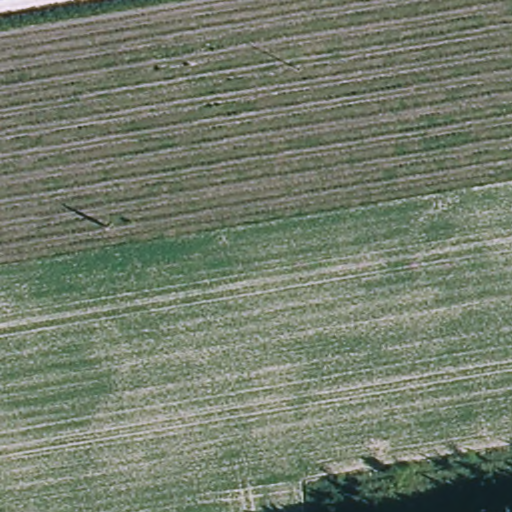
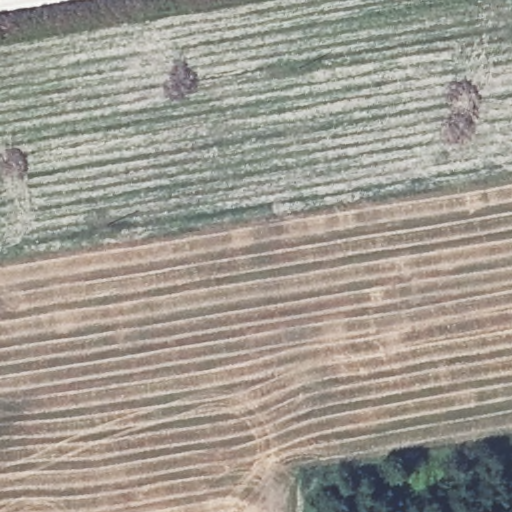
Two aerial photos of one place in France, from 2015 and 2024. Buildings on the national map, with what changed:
[]

